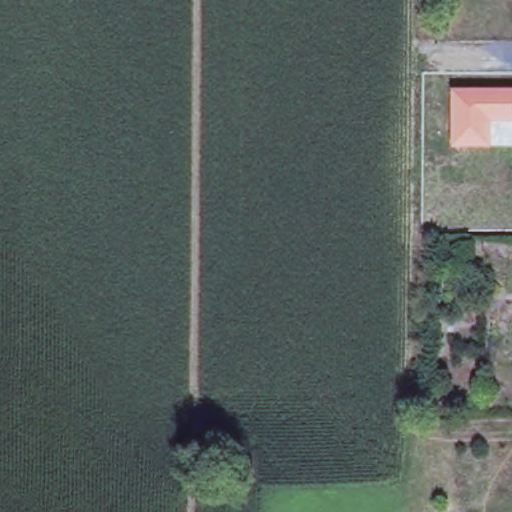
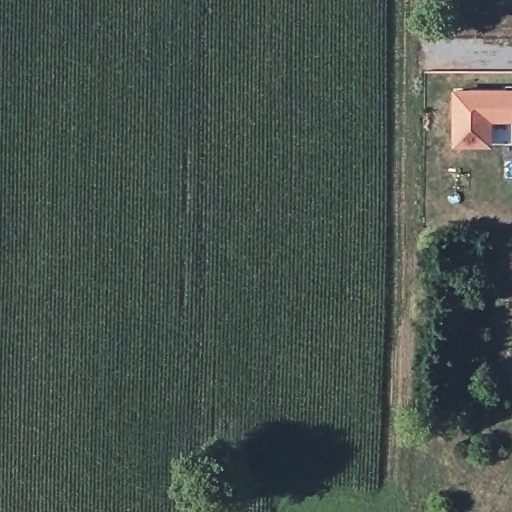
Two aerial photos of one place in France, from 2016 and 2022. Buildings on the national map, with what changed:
unchanged [(453,89),(512,89),(512,122),(493,122),(493,146),(455,146),(453,89)]

